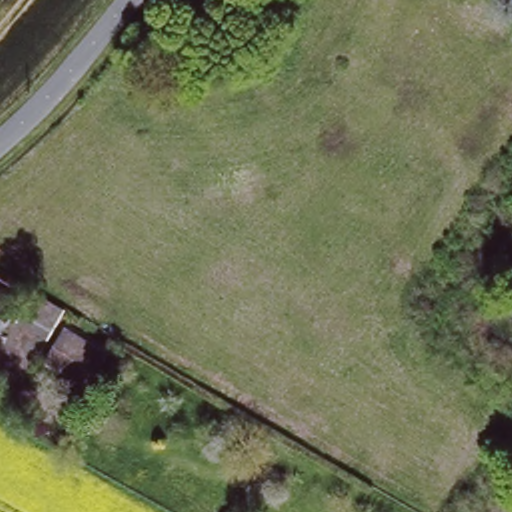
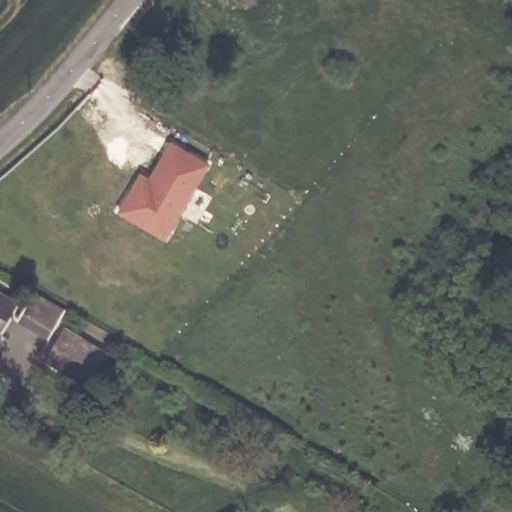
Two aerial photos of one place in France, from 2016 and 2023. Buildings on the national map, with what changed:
new [(139,172),(150,178),(171,141),(210,163),(166,239),(117,212),(139,172)]
unchanged [(16,299),(0,328),(0,290),(16,299)]
unchanged [(31,291),(64,310),(49,338),(15,319),(31,291)]
unchanged [(64,325),(104,347),(86,381),(45,360),(64,325)]

